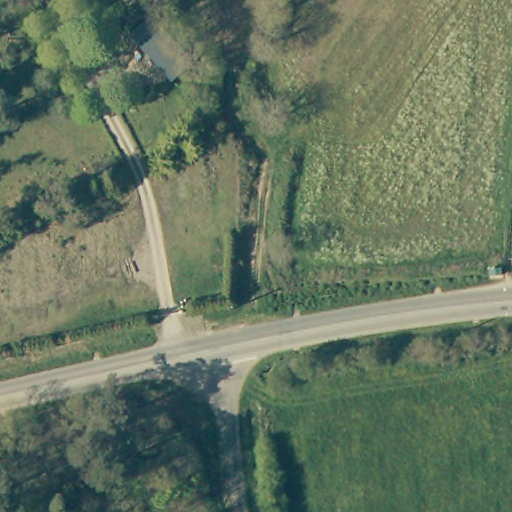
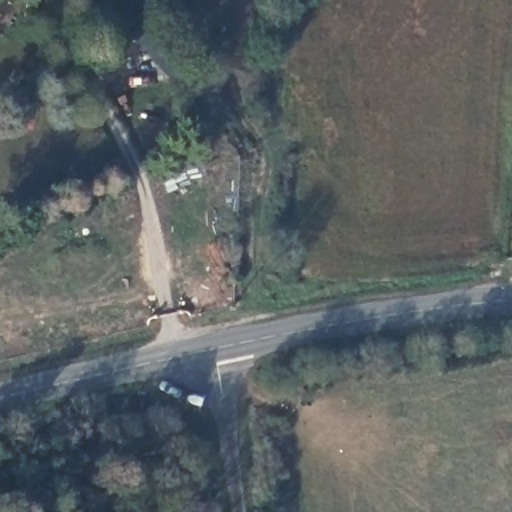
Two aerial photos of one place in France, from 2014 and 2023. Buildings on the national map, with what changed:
[]

